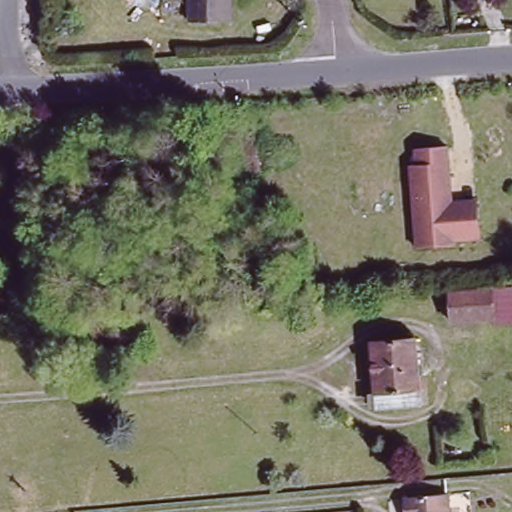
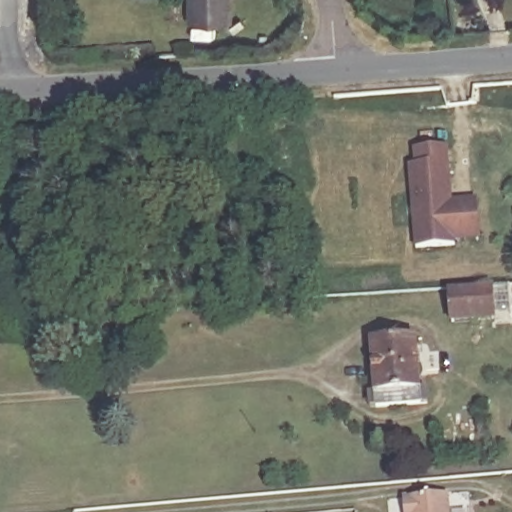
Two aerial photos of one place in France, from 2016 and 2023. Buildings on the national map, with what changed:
unchanged [(193,24),(193,0),(230,0),(230,24),(193,24)]
unchanged [(454,201),(477,200),(480,240),(455,242),(456,248),(415,249),(410,166),(415,165),(415,148),(448,147),(454,201)]
unchanged [(512,287),(512,321),(452,324),(449,291),(512,287)]
unchanged [(419,340),(422,391),(377,394),(373,344),(419,340)]
unchanged [(456,512),(411,512),(410,499),(454,494),(456,512)]

